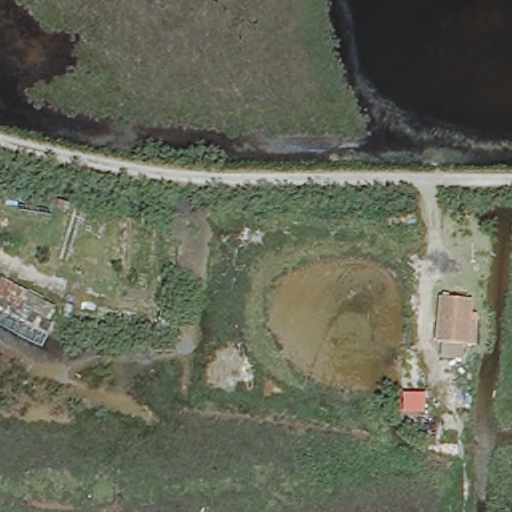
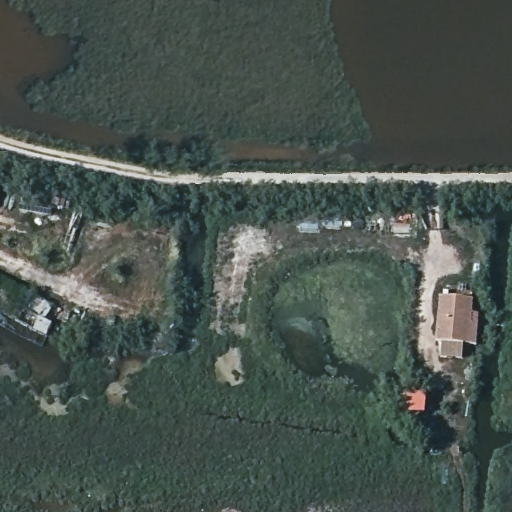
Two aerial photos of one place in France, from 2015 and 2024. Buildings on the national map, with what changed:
unchanged [(442,345),(443,334),(437,334),(440,291),(472,292),(471,314),(477,314),(475,336),(463,335),(462,347),(442,345)]

